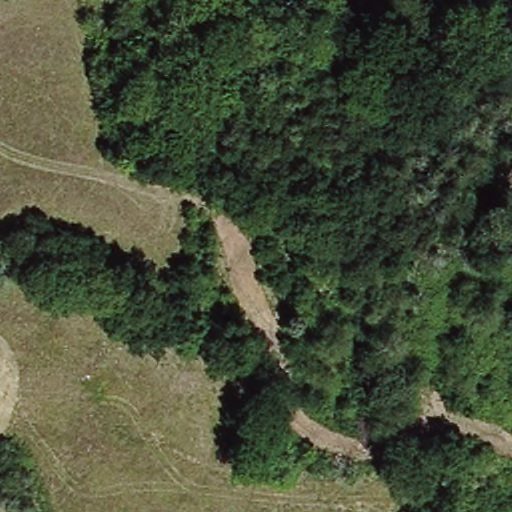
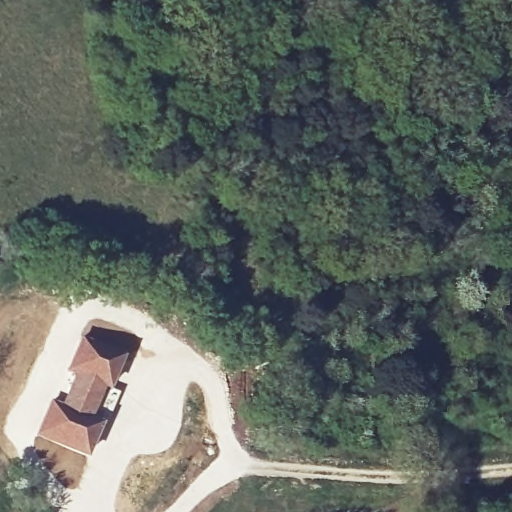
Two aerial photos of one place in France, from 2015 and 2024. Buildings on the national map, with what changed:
unchanged [(387,255),(382,259),(379,259),(375,255),(374,250),(379,245),(382,245),(387,249),(387,252),(387,255)]
new [(52,400),(62,405),(77,372),(68,368),(81,336),(122,353),(108,385),(120,389),(105,425),(99,421),(86,453),(37,431),(52,400)]

